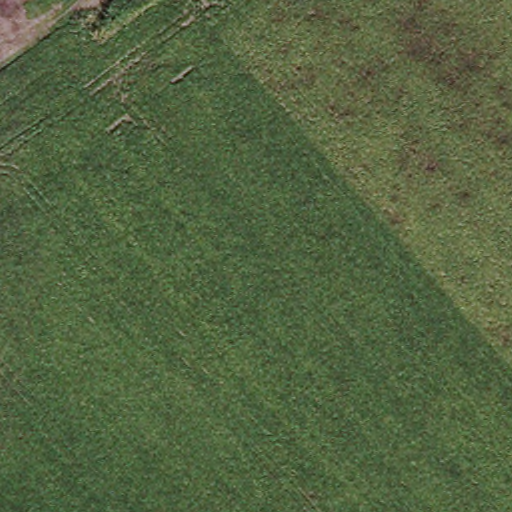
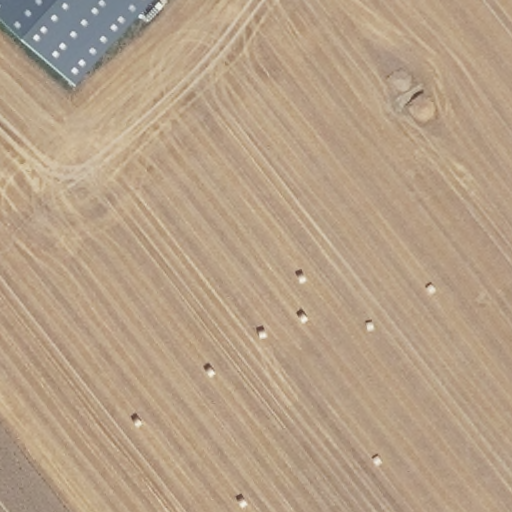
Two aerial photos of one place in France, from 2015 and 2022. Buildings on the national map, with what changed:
new [(72,77),(0,12),(0,0),(143,0),(72,77)]

